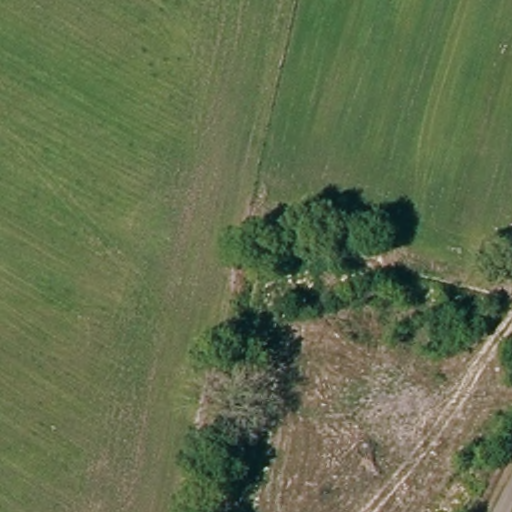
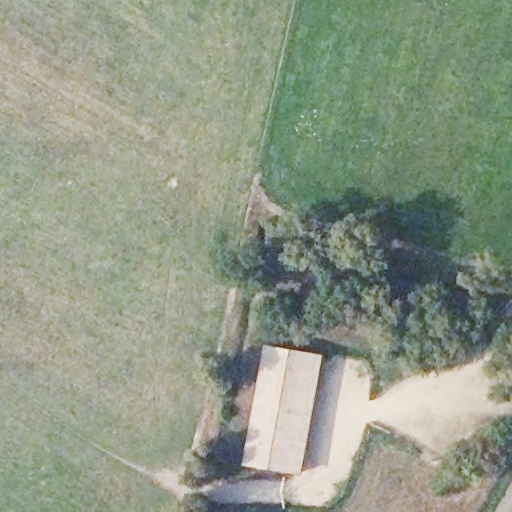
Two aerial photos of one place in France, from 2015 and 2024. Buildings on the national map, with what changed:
new [(324,354),(304,474),(246,465),(267,345),(324,354)]

